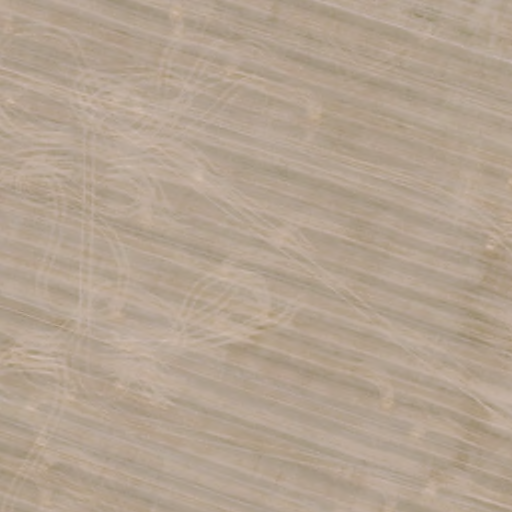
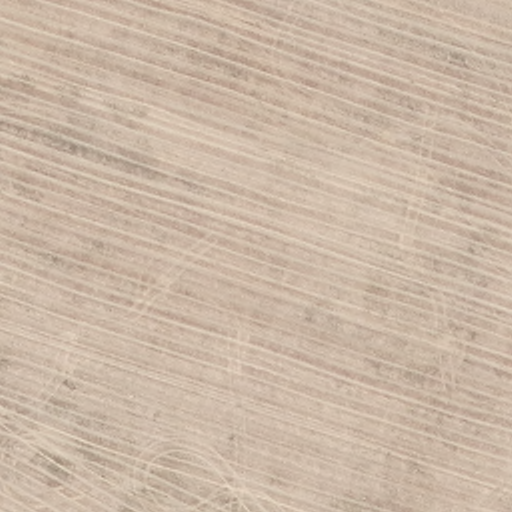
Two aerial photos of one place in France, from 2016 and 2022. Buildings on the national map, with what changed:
[]

